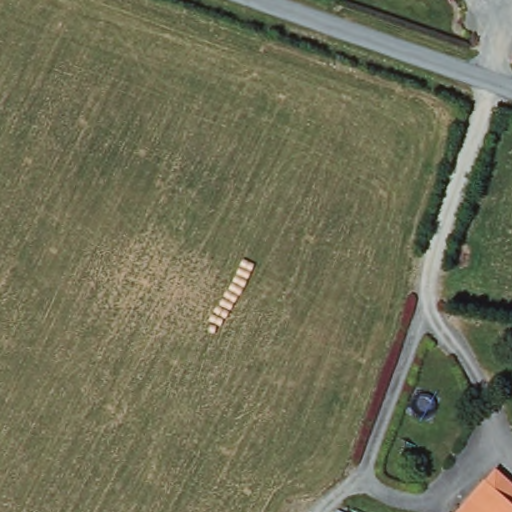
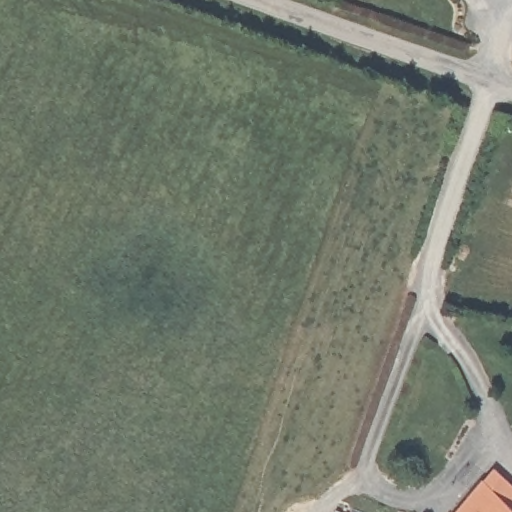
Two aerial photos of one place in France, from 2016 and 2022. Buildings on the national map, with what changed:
unchanged [(490,486),(501,473),(512,483),(512,512),(465,512),(490,486)]

